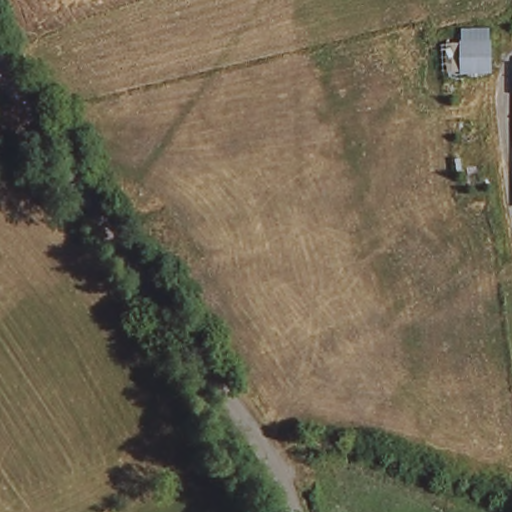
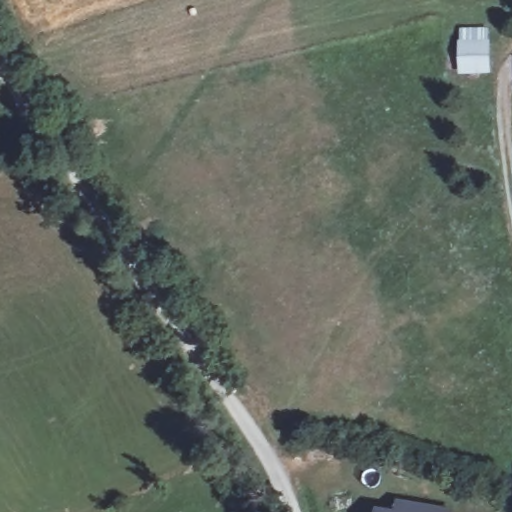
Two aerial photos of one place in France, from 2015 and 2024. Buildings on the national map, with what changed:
unchanged [(484,42),(485,74),(462,74),(460,42),(484,42)]
new [(397,500),(454,509),(453,512),(375,512),(375,508),(395,510),(397,500)]

